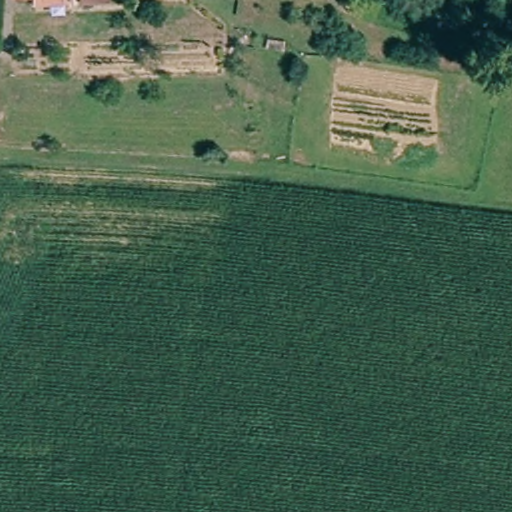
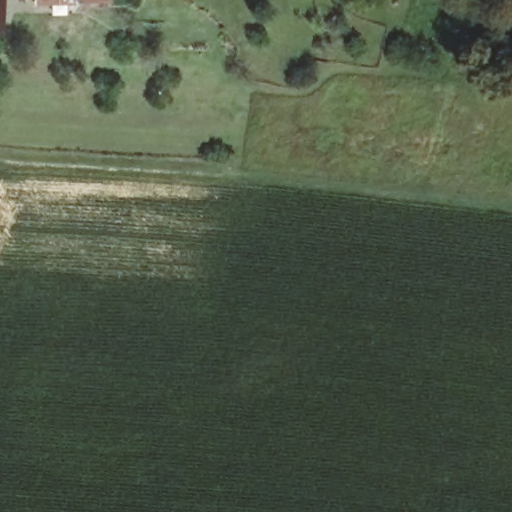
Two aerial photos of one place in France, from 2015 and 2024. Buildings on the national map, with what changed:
unchanged [(107,0),(107,3),(15,3),(14,0),(107,0)]

